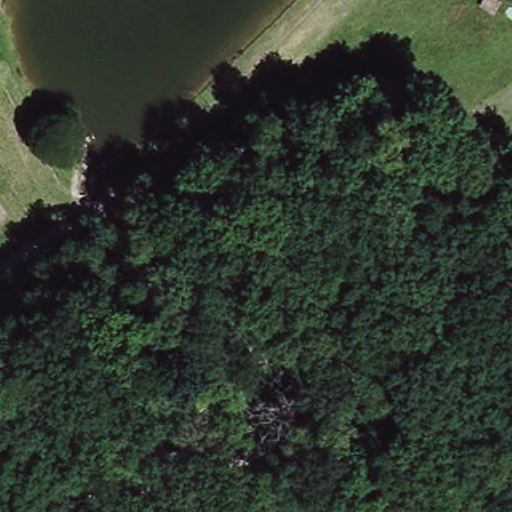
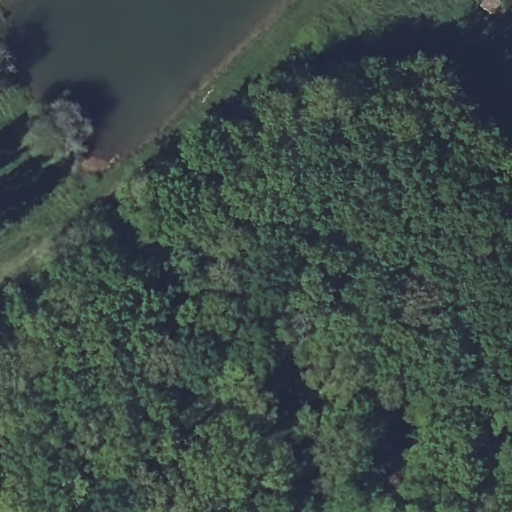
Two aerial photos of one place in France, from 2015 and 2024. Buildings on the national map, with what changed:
unchanged [(512,33),(501,23),(512,10),(512,33)]

